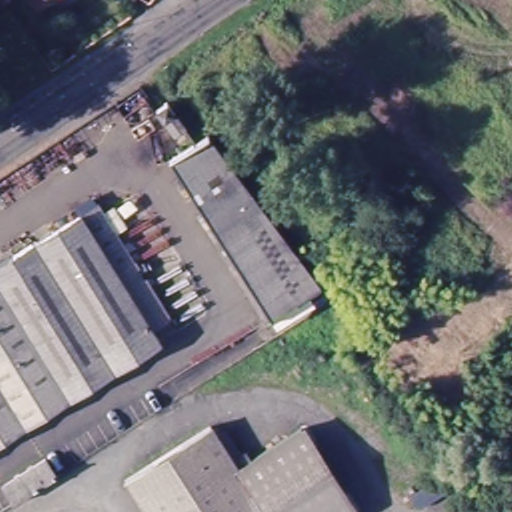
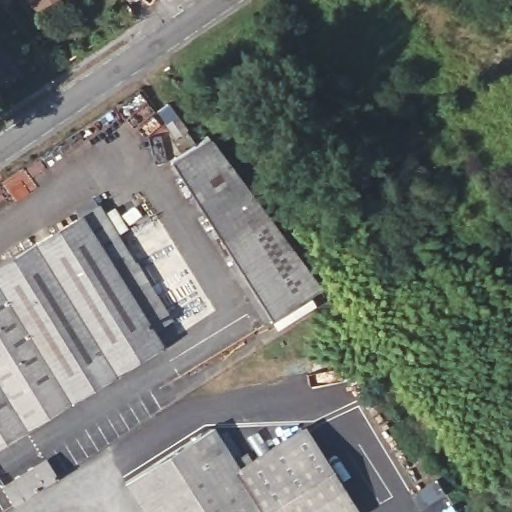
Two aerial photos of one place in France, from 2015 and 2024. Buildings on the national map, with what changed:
unchanged [(5,11),(0,5),(0,0),(11,0),(14,5),(5,11)]
unchanged [(58,0),(49,7),(43,0),(58,0)]
unchanged [(166,105),(184,130),(173,137),(155,111),(166,105)]
unchanged [(278,328),(274,321),(169,164),(208,139),(323,288),(328,295),(278,328)]
unchanged [(149,332),(158,346),(0,443),(0,267),(95,209),(100,217),(111,211),(119,224),(108,230),(128,264),(113,273),(149,332)]
unchanged [(165,323),(149,332),(113,273),(128,264),(165,323)]
unchanged [(129,484),(213,431),(219,441),(227,437),(243,461),(248,458),(253,467),(306,433),(356,512),(146,512),(129,484)]
unchanged [(11,507),(0,490),(0,489),(43,461),(54,480),(11,507)]

